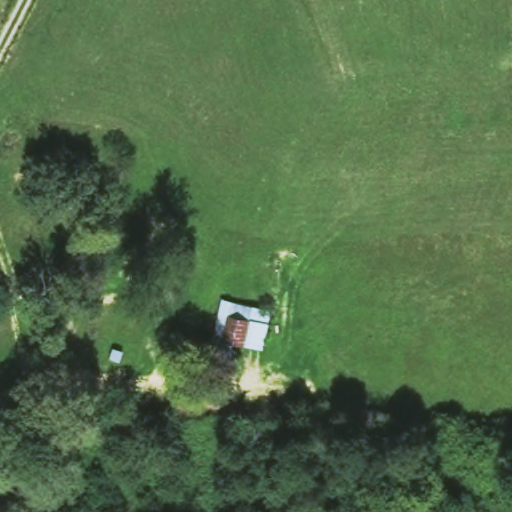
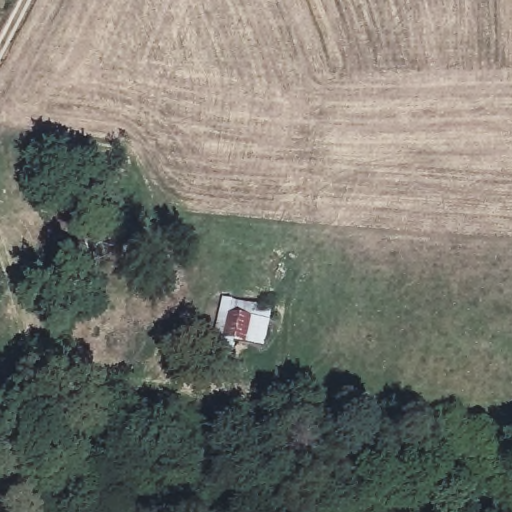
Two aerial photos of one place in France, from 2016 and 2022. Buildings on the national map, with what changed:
unchanged [(270,300),(263,347),(229,341),(225,362),(203,360),(219,293),(270,300)]

